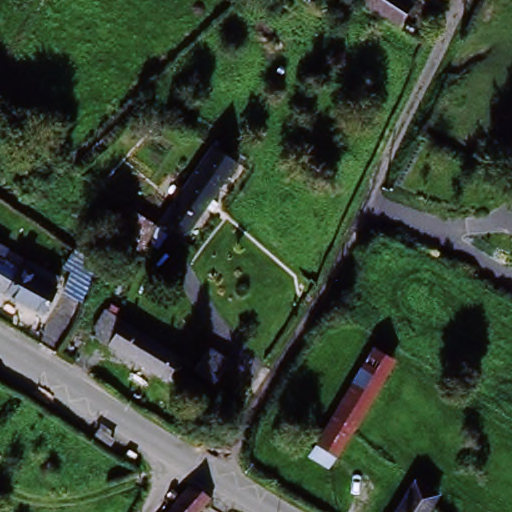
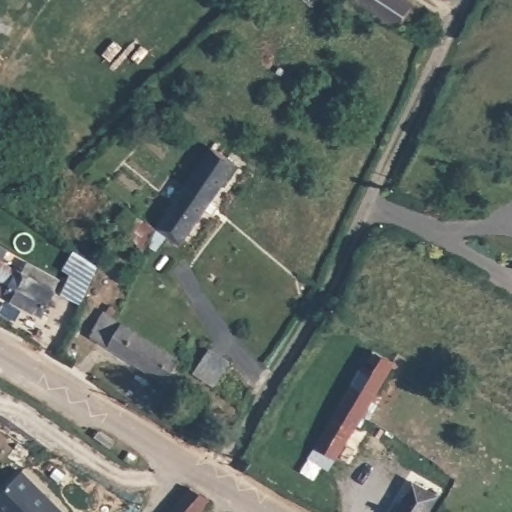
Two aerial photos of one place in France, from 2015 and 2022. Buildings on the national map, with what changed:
unchanged [(400,28),(360,2),(361,0),(405,0),(414,6),(400,28)]
unchanged [(160,228),(215,148),(239,164),(182,245),(177,252),(159,238),(164,232),(160,228)]
unchanged [(80,302),(64,294),(75,274),(66,270),(78,248),(101,260),(80,302)]
unchanged [(39,314),(0,293),(0,264),(21,276),(27,264),(57,280),(39,314)]
unchanged [(107,344),(120,325),(174,362),(160,382),(107,344)]
unchanged [(312,456),(317,445),(375,349),(395,360),(354,429),(352,428),(335,456),(329,466),(312,456)]
unchanged [(202,382),(218,359),(240,374),(225,396),(202,382)]
new [(0,509),(0,496),(22,472),(67,512),(3,512),(0,509)]
unchanged [(412,481),(437,495),(430,506),(426,512),(393,512),(412,481)]
unchanged [(195,485),(210,496),(197,512),(171,512),(195,485)]

